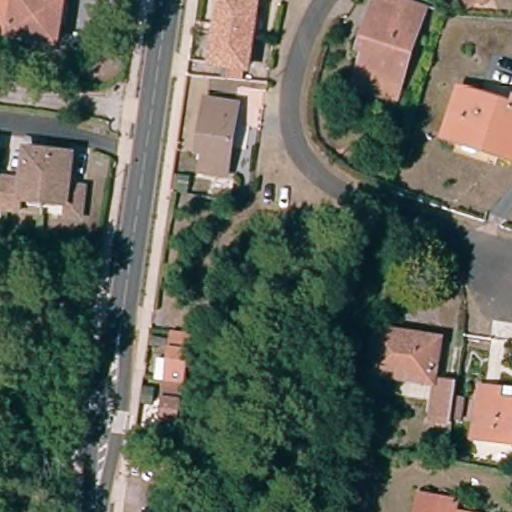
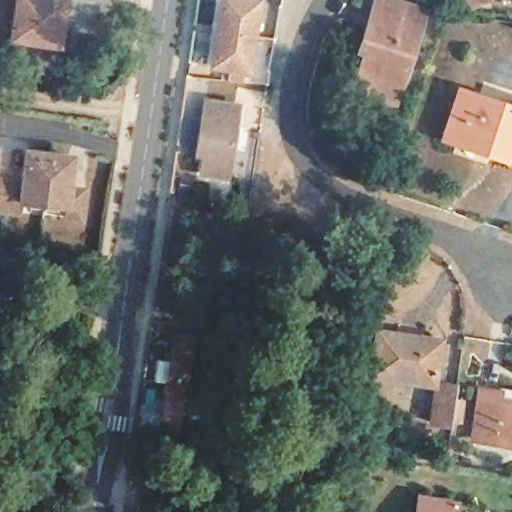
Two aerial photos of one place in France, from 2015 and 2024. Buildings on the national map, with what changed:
unchanged [(9,39),(14,0),(63,0),(60,23),(56,45),(9,39)]
unchanged [(209,65),(218,0),(245,0),(255,2),(245,71),(209,65)]
unchanged [(351,90),(361,55),(356,52),(373,0),(389,0),(423,12),(395,105),(351,90)]
unchanged [(458,11),(454,0),(487,0),(490,6),(458,11)]
unchanged [(442,135),(456,91),(511,107),(512,104),(512,164),(493,158),(440,140),(442,135)]
unchanged [(237,106),(227,179),(198,175),(201,156),(194,156),(199,120),(201,101),(237,106)]
unchanged [(24,164),(30,156),(66,161),(70,165),(67,193),(83,195),(80,223),(64,221),(65,212),(20,207),(19,216),(0,215),(0,184),(21,187),(24,164)]
unchanged [(188,338),(174,420),(170,437),(155,435),(169,335),(188,338)]
unchanged [(428,392),(364,382),(370,337),(434,346),(428,392)]
unchanged [(445,433),(425,430),(430,388),(450,391),(445,433)]
unchanged [(471,440),(478,390),(499,392),(500,388),(512,391),(512,446),(471,440)]
unchanged [(444,500),(456,503),(454,512),(415,512),(418,496),(444,500)]

